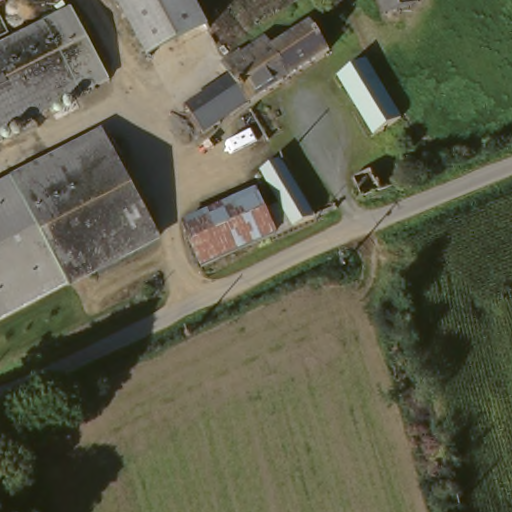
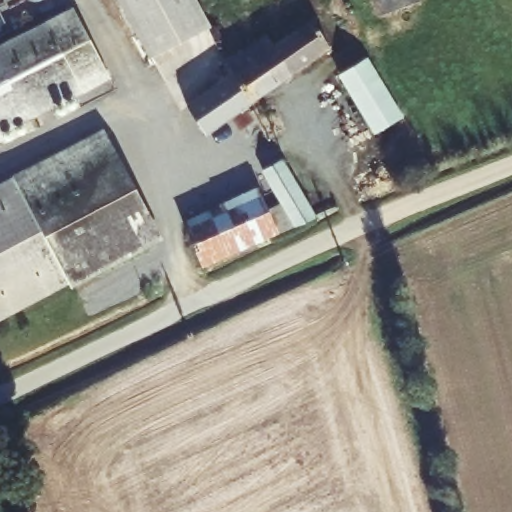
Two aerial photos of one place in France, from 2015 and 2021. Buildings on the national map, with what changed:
unchanged [(189,0),(206,33),(145,66),(111,0),(189,0)]
unchanged [(387,14),(382,0),(418,0),(418,1),(387,14)]
unchanged [(76,88),(0,128),(0,41),(41,19),(69,4),(104,73),(76,88)]
unchanged [(188,100),(194,96),(234,70),(226,59),(228,59),(244,48),(256,39),(273,30),(273,29),(280,40),(310,21),(313,20),(333,48),(251,101),(208,130),(188,100)]
unchanged [(373,56),(400,116),(371,131),(343,71),(366,59),(373,56)]
unchanged [(147,214),(156,232),(157,234),(68,284),(0,322),(0,183),(103,126),(104,130),(111,143),(114,149),(147,214)]
unchanged [(272,228),(264,206),(276,199),(261,164),(283,154),(310,213),(288,221),(272,228)]
unchanged [(254,189),(264,206),(272,228),(199,265),(181,225),(254,189)]

